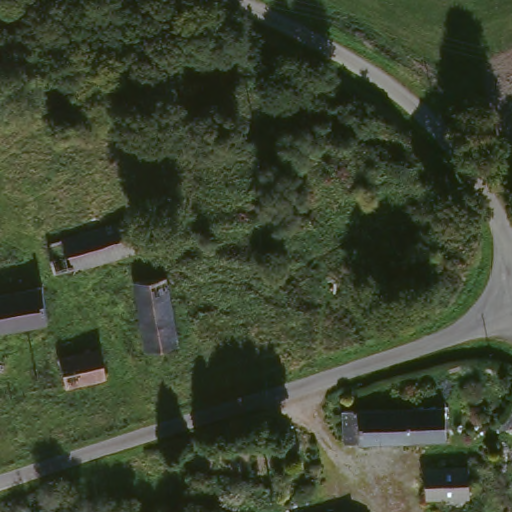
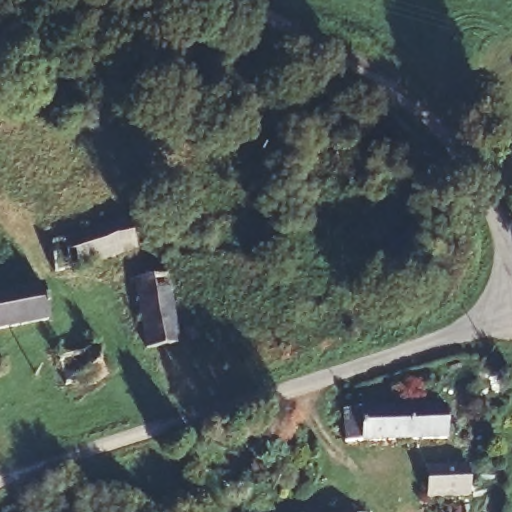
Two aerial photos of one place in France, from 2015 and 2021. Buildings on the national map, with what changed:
unchanged [(129,220),(138,247),(59,270),(51,242),(129,220)]
unchanged [(171,275),(182,342),(149,347),(138,280),(171,275)]
unchanged [(39,291),(46,324),(0,333),(0,298),(39,291)]
unchanged [(101,342),(109,371),(70,380),(61,352),(101,342)]
unchanged [(445,412),(446,442),(349,443),(348,412),(445,412)]
unchanged [(464,465),(466,493),(428,496),(426,467),(464,465)]

